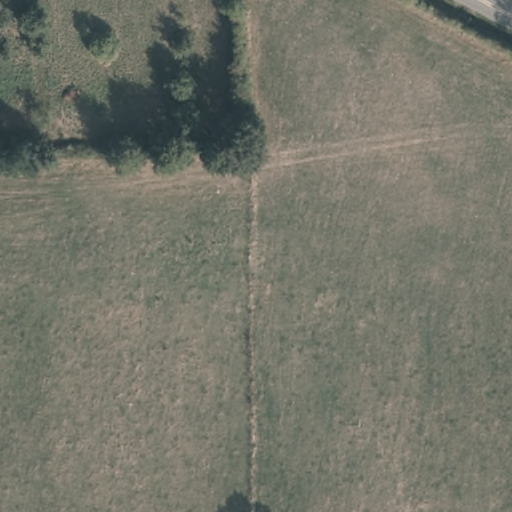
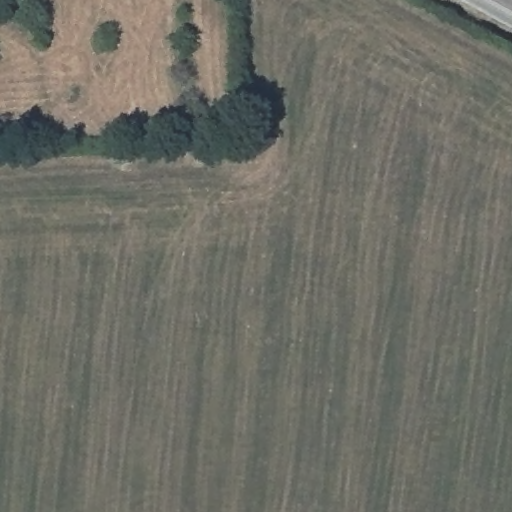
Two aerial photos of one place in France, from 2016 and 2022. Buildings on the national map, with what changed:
[]

